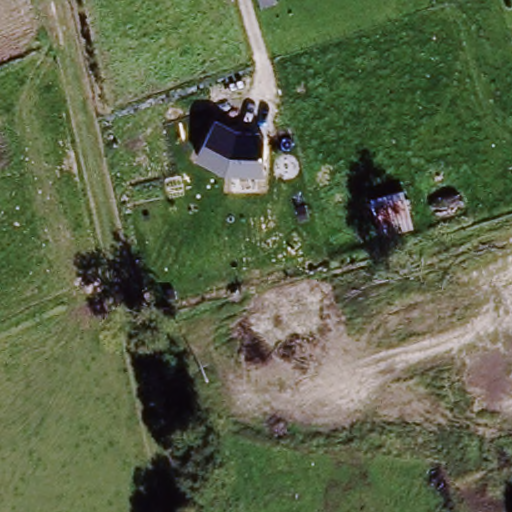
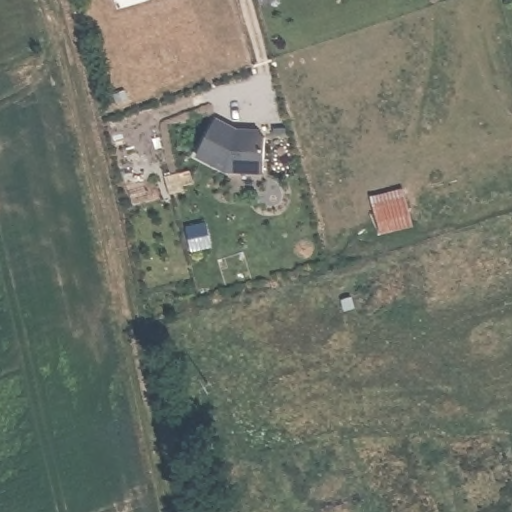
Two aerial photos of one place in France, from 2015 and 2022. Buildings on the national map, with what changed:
unchanged [(235,130),(263,132),(264,174),(225,173),(197,158),(217,122),(235,130)]

